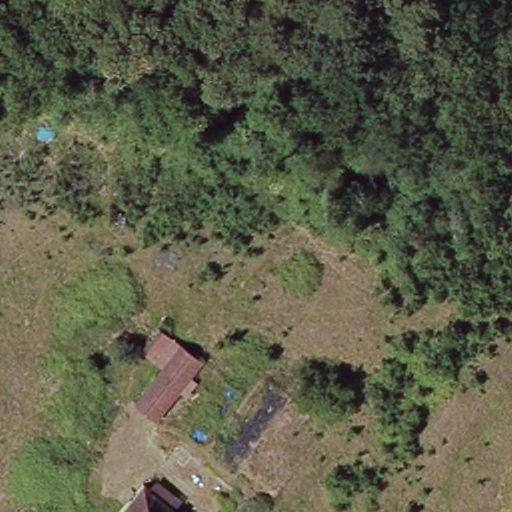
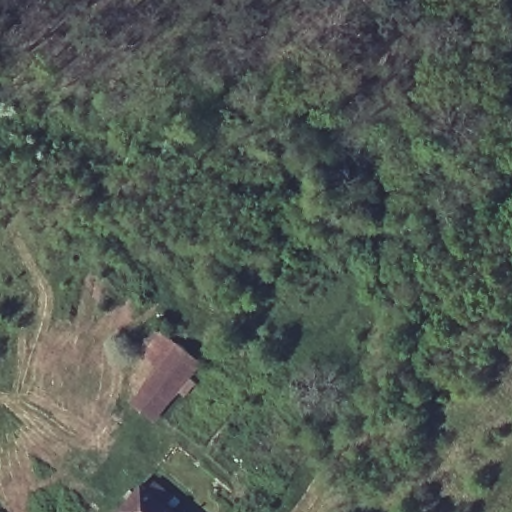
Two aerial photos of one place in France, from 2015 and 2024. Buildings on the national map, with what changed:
unchanged [(151,422),(133,405),(178,348),(196,364),(156,416),(151,422)]
unchanged [(166,512),(120,512),(138,490),(166,512)]

